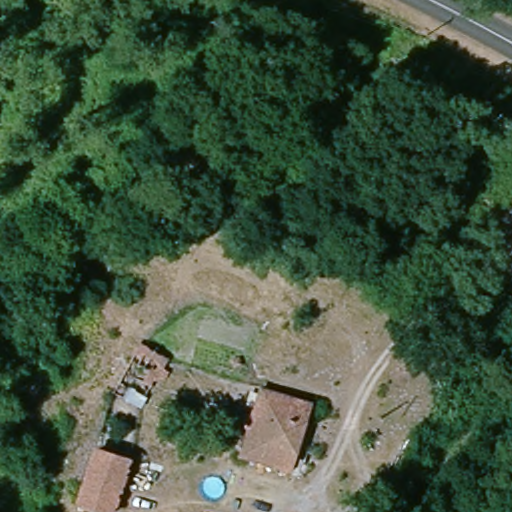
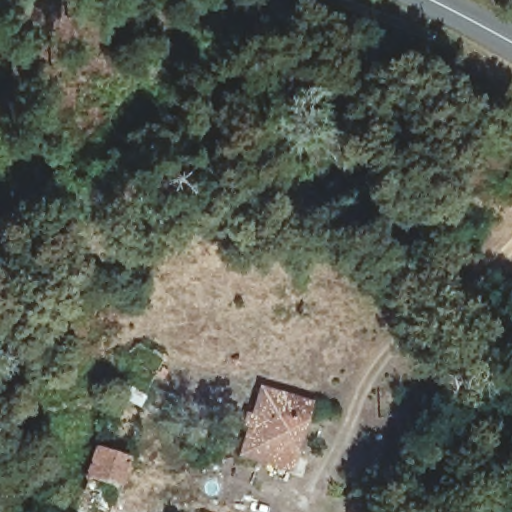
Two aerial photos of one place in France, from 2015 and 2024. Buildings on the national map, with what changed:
unchanged [(138,412),(112,397),(139,349),(166,363),(138,412)]
unchanged [(280,467),(244,456),(263,389),(312,404),(297,452),(291,470),(280,467)]
unchanged [(114,512),(109,512),(80,501),(97,451),(131,461),(114,512)]

